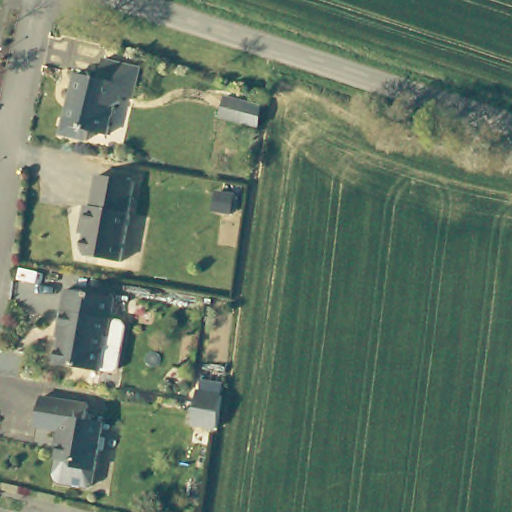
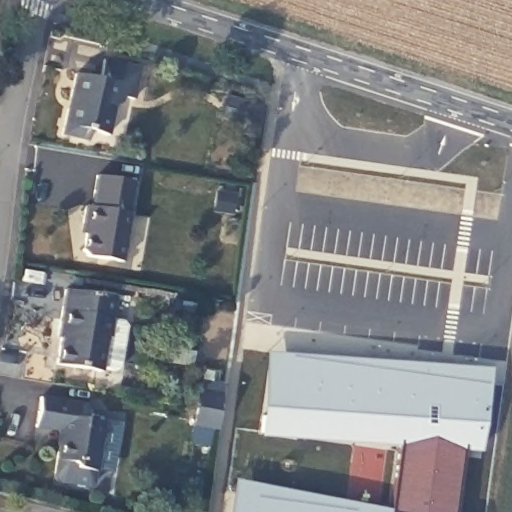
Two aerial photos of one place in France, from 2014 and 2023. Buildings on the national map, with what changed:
unchanged [(142,67),(136,99),(123,97),(121,103),(115,107),(110,133),(92,130),(90,139),(65,134),(70,107),(74,108),(77,96),(73,95),(77,72),(102,77),(106,59),(142,67)]
unchanged [(235,122),(217,116),(223,97),(241,104),(235,122)]
unchanged [(130,181),(125,212),(126,214),(119,261),(80,255),(76,249),(80,226),(77,222),(80,205),(87,206),(92,174),(130,181)]
new [(218,187),(234,190),(232,209),(216,207),(218,187)]
unchanged [(118,325),(111,367),(106,371),(94,368),(94,370),(49,363),(55,324),(53,323),(59,288),(108,297),(105,318),(115,320),(118,325)]
new [(273,418),(259,418),(257,433),(263,355),(282,355),(273,418)]
new [(476,450),(461,447),(451,512),(385,512),(395,442),(257,435),(259,418),(273,418),(282,355),(487,372),(476,450)]
unchanged [(194,422),(197,405),(199,389),(221,392),(219,408),(217,425),(194,422)]
unchanged [(91,482),(86,485),(58,481),(54,478),(52,472),(58,434),(56,427),(34,424),(39,395),(86,402),(84,417),(101,420),(91,482)]
new [(385,512),(361,512),(248,497),(246,512),(225,512),(231,483),(385,511),(385,512)]
new [(248,497),(361,512),(246,512),(248,497)]

